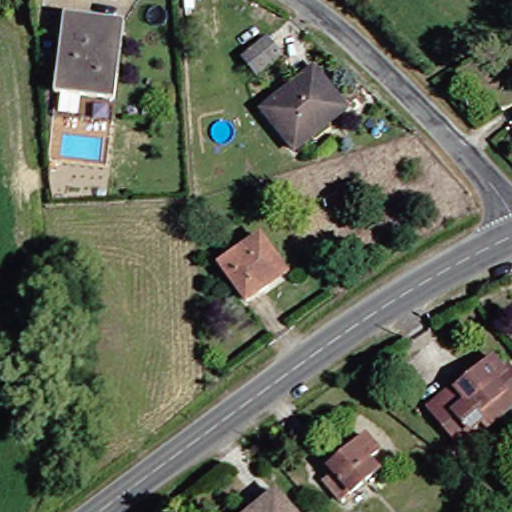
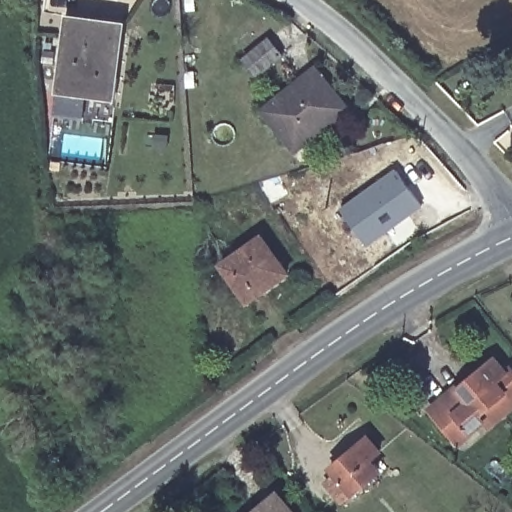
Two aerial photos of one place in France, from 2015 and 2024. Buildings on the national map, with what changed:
unchanged [(68,20),(68,13),(129,21),(128,27),(119,98),(112,97),(60,91),(68,20)]
unchanged [(284,53),(259,72),(246,58),(271,37),(284,53)]
unchanged [(297,150),(265,111),(316,67),(349,107),(331,121),(314,135),(297,150)]
new [(367,247),(340,209),(396,170),(423,207),(367,247)]
unchanged [(288,273),(248,302),(223,265),(262,236),(288,273)]
unchanged [(489,423),(465,443),(437,412),(462,390),(469,385),(498,358),(511,372),(512,371),(512,413),(493,428),(489,423)]
unchanged [(413,473),(405,482),(368,447),(378,438),(413,473)]
unchanged [(364,470),(374,482),(338,512),(336,512),(321,494),(331,485),(325,480),(332,474),(362,448),(374,463),(364,470)]
unchanged [(258,512),(262,508),(278,495),(293,512),(258,512)]

